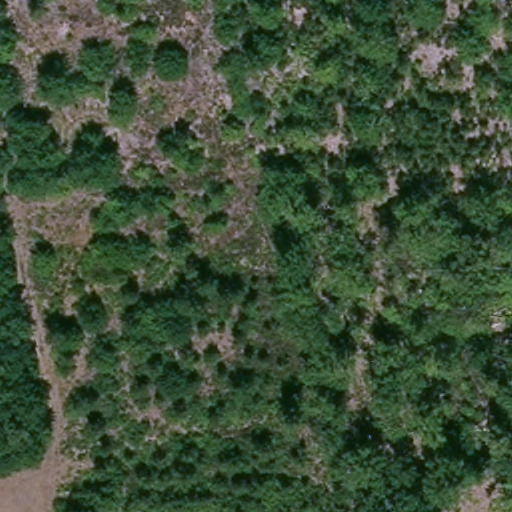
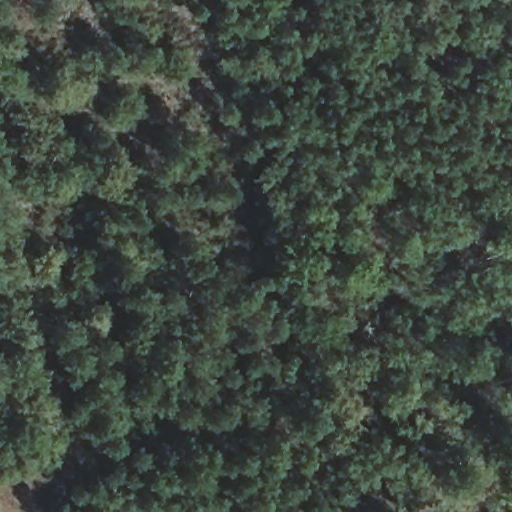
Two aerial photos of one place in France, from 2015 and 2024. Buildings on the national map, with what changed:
[]

